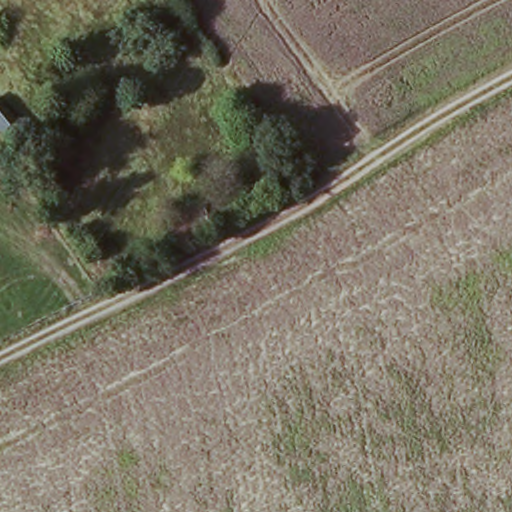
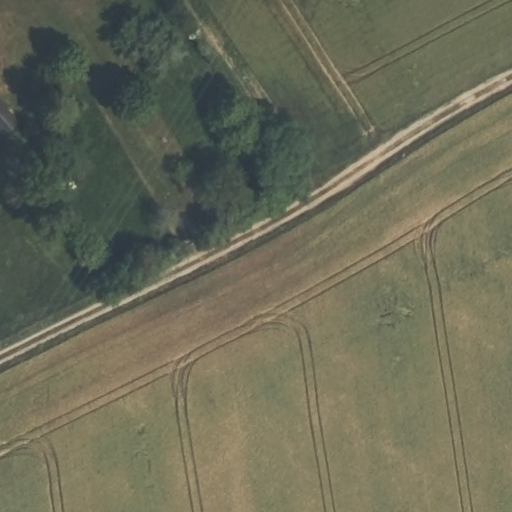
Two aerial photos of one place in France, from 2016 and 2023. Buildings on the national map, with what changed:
unchanged [(13,123),(35,152),(21,165),(0,137),(0,134),(13,123)]

